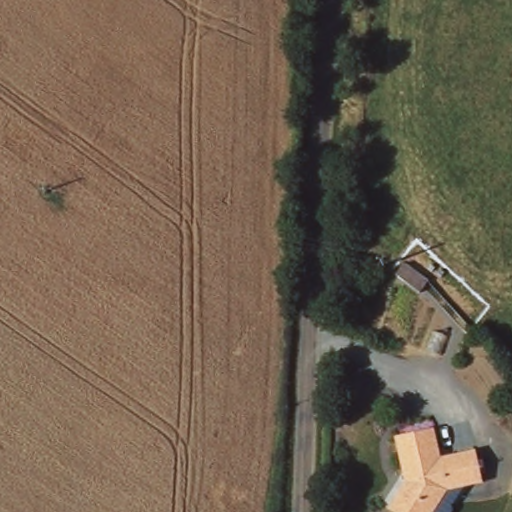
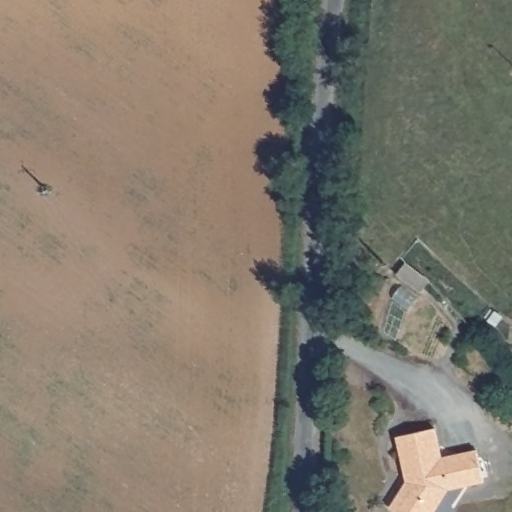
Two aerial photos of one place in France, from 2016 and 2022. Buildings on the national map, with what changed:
unchanged [(444,459),(481,450),(487,484),(445,492),(434,512),(393,512),(389,510),(407,480),(396,437),(435,429),(444,459)]

